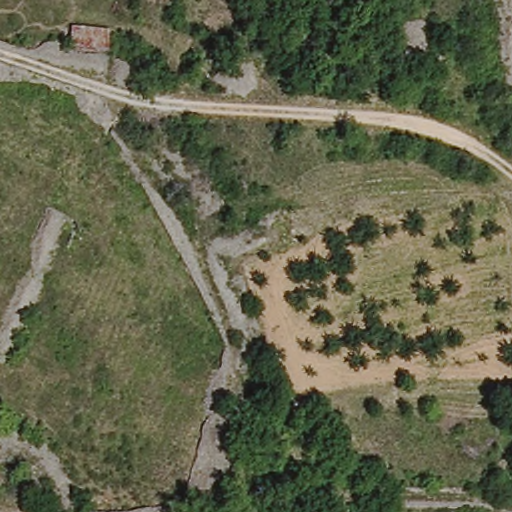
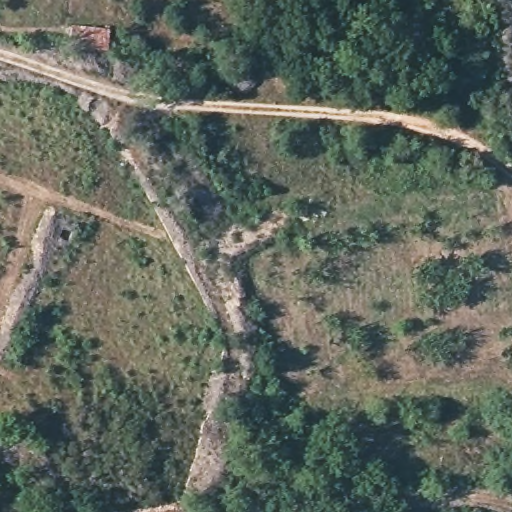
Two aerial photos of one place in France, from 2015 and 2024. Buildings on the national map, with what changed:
unchanged [(68,42),(72,21),(110,25),(100,50),(68,42)]

